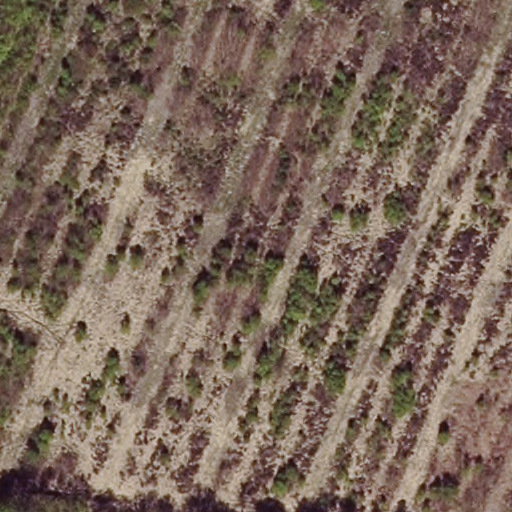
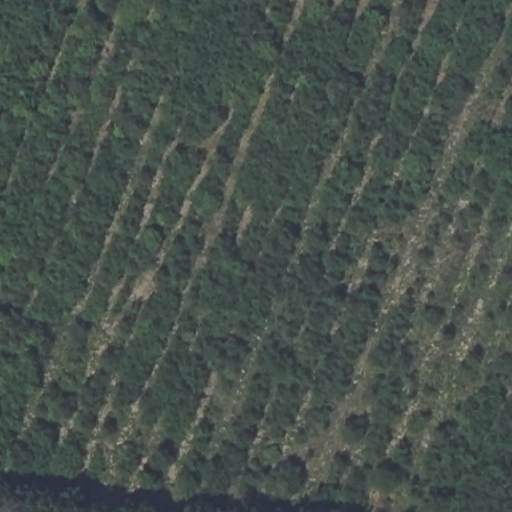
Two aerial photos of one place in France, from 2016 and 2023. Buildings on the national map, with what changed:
[]

